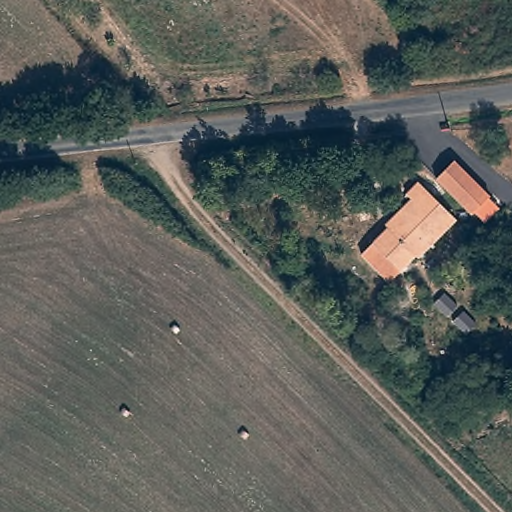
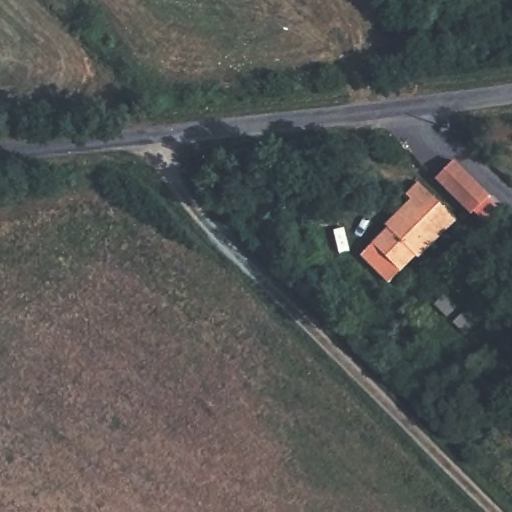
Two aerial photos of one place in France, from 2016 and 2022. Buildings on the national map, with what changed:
unchanged [(490,196),(472,215),(436,180),(455,160),(490,196)]
unchanged [(419,262),(416,259),(392,283),(363,255),(391,227),(389,226),(410,204),(406,200),(417,187),(456,225),(419,262)]

